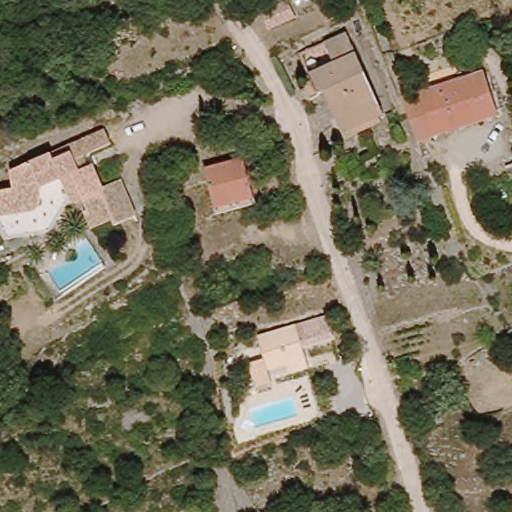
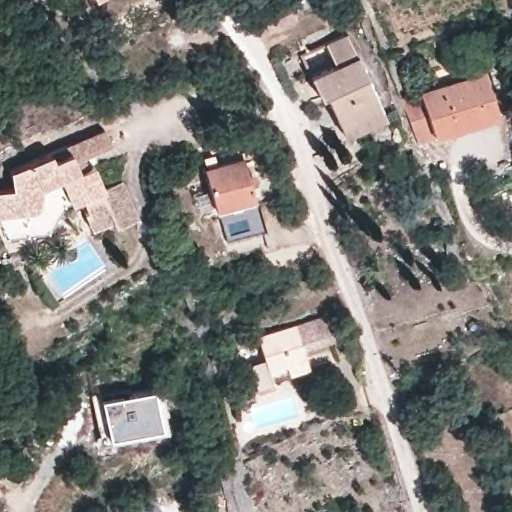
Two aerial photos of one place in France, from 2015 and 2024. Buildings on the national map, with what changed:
unchanged [(292,0),(298,15),(272,26),(265,10),(289,0),(292,0)]
unchanged [(341,129),(324,90),(315,94),(305,70),(331,61),(322,41),(346,30),(382,111),(341,129)]
unchanged [(510,109),(425,139),(402,90),(495,59),(510,109)]
unchanged [(28,204),(0,205),(0,180),(2,179),(2,164),(100,124),(107,140),(87,148),(102,179),(117,174),(134,209),(93,229),(78,203),(66,210),(54,186),(47,185),(28,204)]
unchanged [(253,201),(212,208),(207,168),(246,162),(253,201)]
unchanged [(28,204),(47,185),(54,186),(66,210),(28,229),(0,229),(0,205),(28,204)]
unchanged [(182,222),(188,237),(178,240),(173,226),(182,222)]
unchanged [(262,371),(251,333),(292,320),(305,357),(311,374),(288,382),(282,364),(262,371)]
unchanged [(242,378),(257,374),(262,388),(247,393),(242,378)]
new [(108,441),(102,404),(155,397),(161,433),(108,441)]

